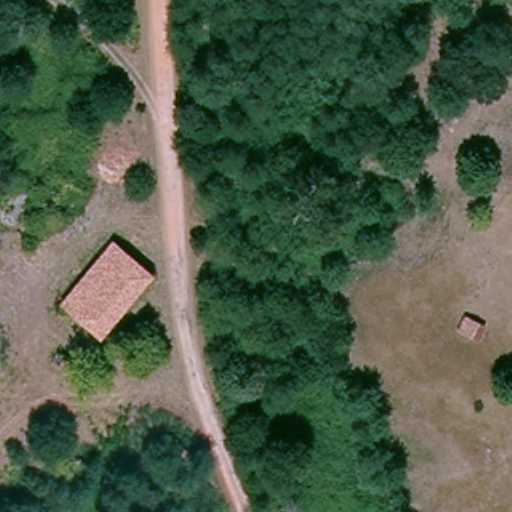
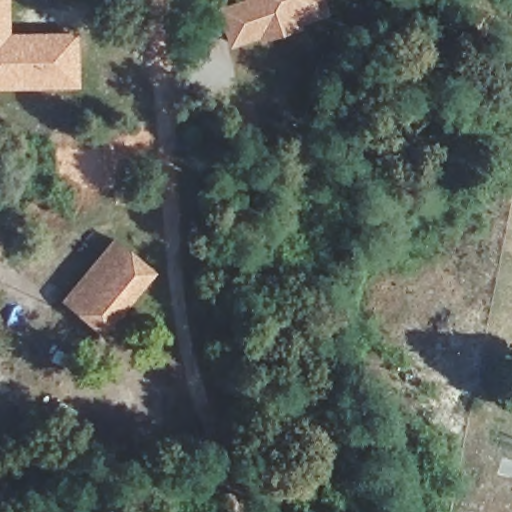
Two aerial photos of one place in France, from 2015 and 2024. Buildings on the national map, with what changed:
new [(10,33),(77,33),(78,86),(0,87),(0,0),(8,0),(10,33)]
new [(217,8),(240,0),(324,0),(328,13),(300,21),(302,27),(262,40),(260,35),(231,47),(217,8)]
unchanged [(254,217),(261,205),(280,215),(272,228),(254,217)]
unchanged [(101,336),(60,304),(112,239),(151,270),(101,336)]
unchanged [(164,462),(174,441),(187,447),(179,468),(164,462)]
unchanged [(40,443),(101,471),(89,500),(26,474),(40,443)]

